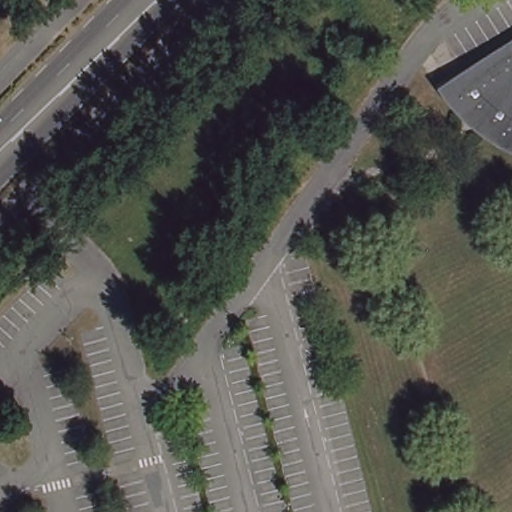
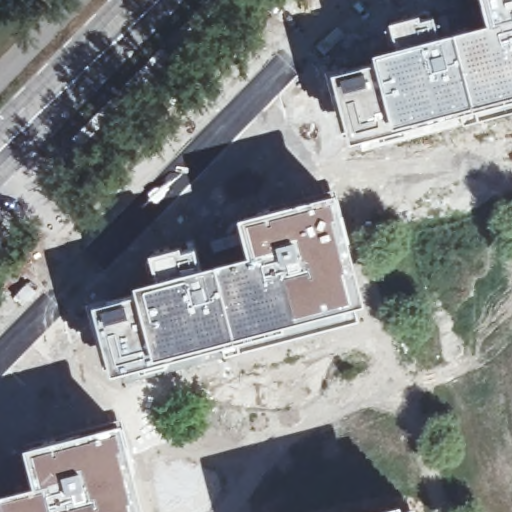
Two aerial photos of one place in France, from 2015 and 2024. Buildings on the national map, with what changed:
new [(510,102),(505,104),(505,101),(469,109),(348,144),(330,70),(375,59),(374,51),(397,44),(440,32),(487,20),(482,0),(512,0),(512,108),(510,102)]
new [(435,12),(440,32),(397,44),(390,20),(435,12)]
demolished [(497,135),(486,127),(475,116),(465,105),(457,94),(512,57),(512,145),(509,143),(497,135)]
new [(157,276),(202,264),(249,251),(239,215),(337,188),(354,244),(365,301),(333,310),(296,322),(158,360),(137,290),(134,282),(157,276)]
new [(182,244),(183,247),(196,244),(202,264),(157,276),(150,251),(182,244)]
new [(137,290),(158,360),(111,375),(92,303),(137,290)]
new [(35,483),(25,445),(123,420),(145,512),(0,512),(0,491),(35,483)]
new [(409,512),(350,512),(404,498),(409,512)]

